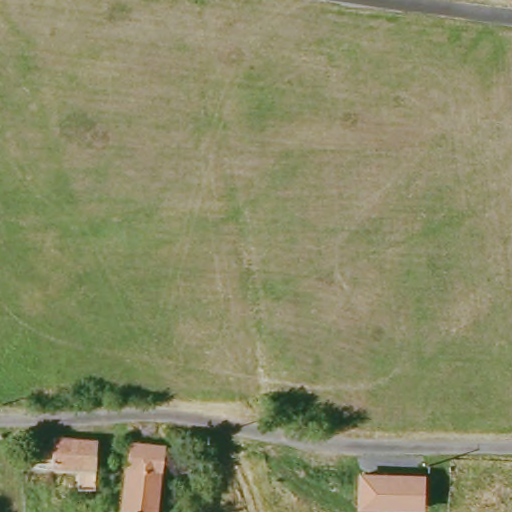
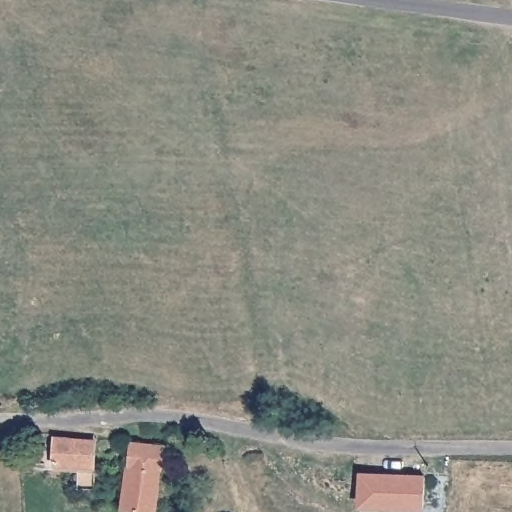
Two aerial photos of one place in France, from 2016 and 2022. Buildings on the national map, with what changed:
unchanged [(97,438),(98,488),(79,487),(79,465),(57,463),(58,433),(97,438)]
unchanged [(169,477),(164,477),(160,512),(123,512),(133,443),(173,445),(169,477)]
unchanged [(425,512),(415,512),(358,509),(360,472),(426,475),(425,512)]

